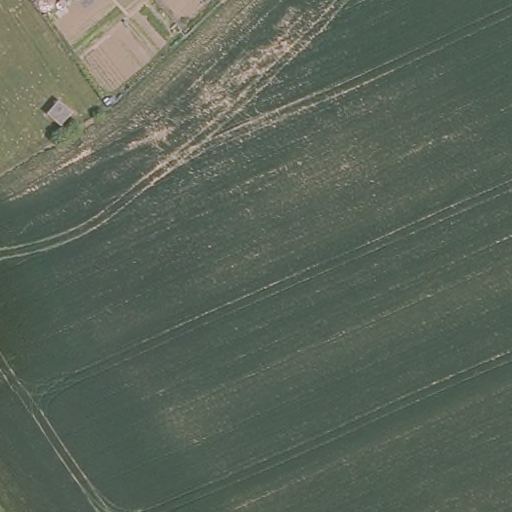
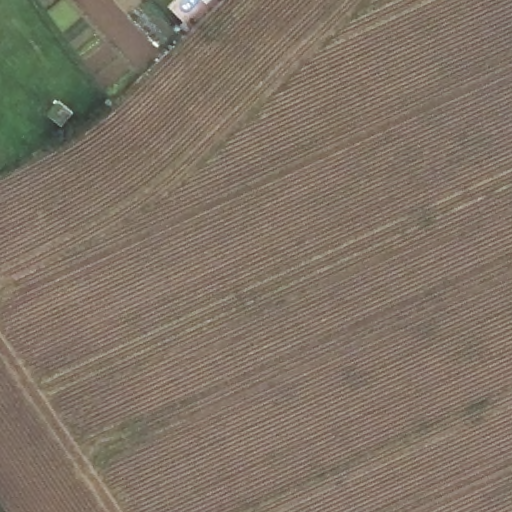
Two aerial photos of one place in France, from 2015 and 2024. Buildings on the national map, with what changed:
unchanged [(72,111),(62,126),(46,114),(55,99),(72,111)]

